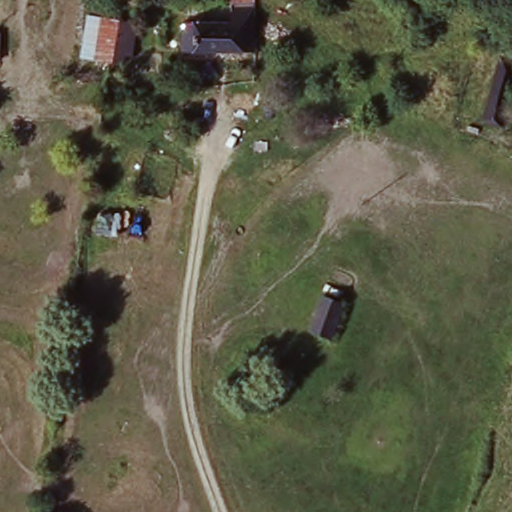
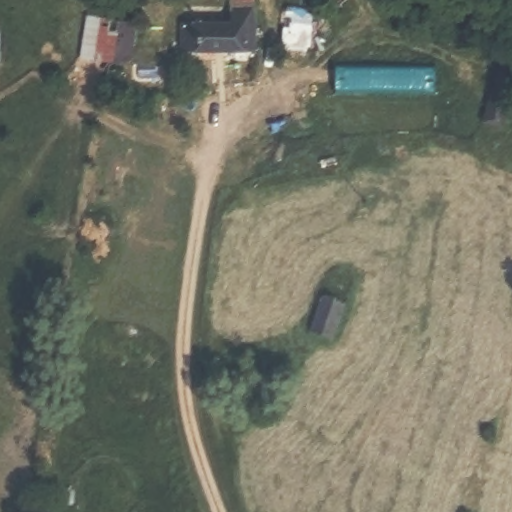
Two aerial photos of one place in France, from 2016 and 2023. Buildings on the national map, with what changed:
unchanged [(184,25),(236,26),(236,14),(256,14),(255,58),(183,56),(184,25)]
unchanged [(80,63),(88,20),(121,21),(115,68),(80,63)]
unchanged [(0,67),(0,39),(2,39),(1,67),(0,67)]
unchanged [(512,80),(500,131),(482,125),(500,53),(512,57),(512,80)]
unchanged [(345,306),(333,346),(314,333),(325,299),(345,306)]

